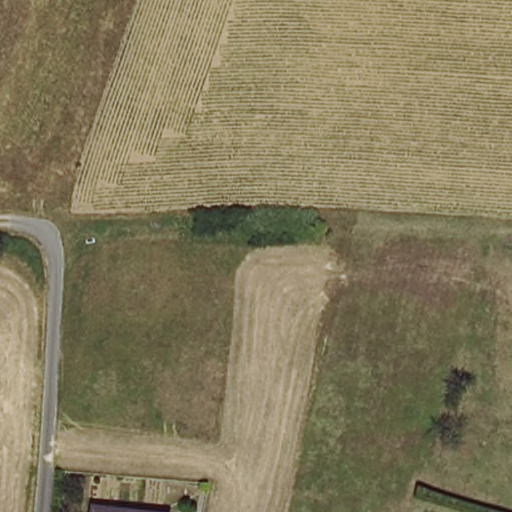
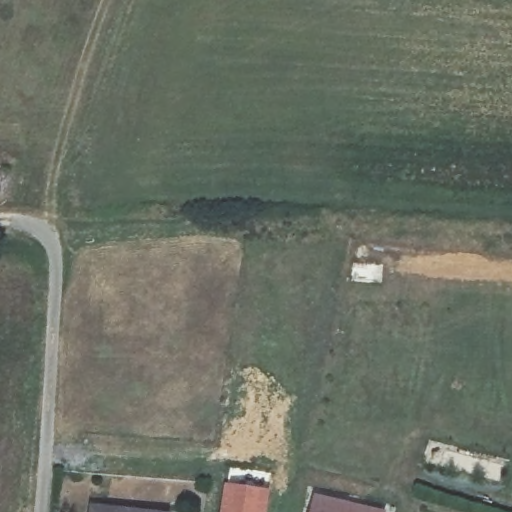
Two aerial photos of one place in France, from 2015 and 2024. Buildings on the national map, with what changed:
new [(272,491),(268,512),(221,512),(225,485),(272,491)]
new [(312,497),(379,512),(308,512),(312,497)]
unchanged [(138,512),(94,512),(95,507),(138,512)]

